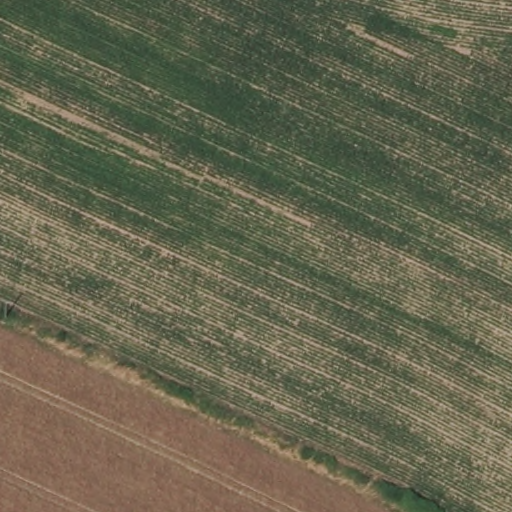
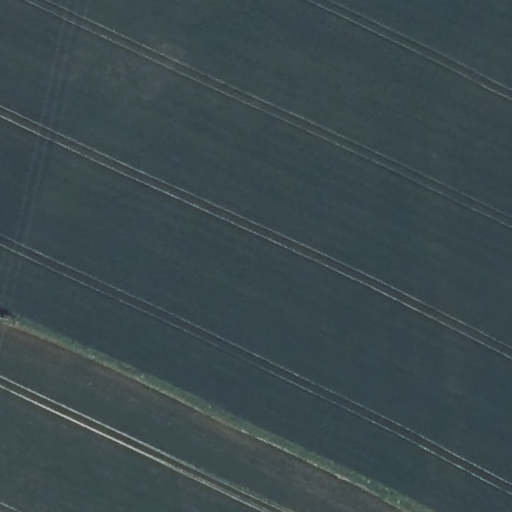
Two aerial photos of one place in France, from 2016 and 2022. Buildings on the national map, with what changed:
[]

